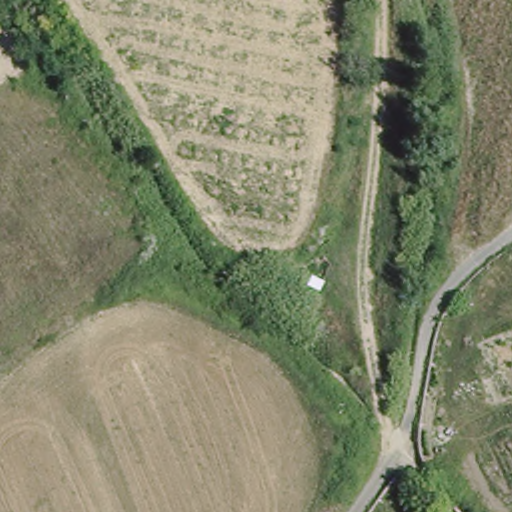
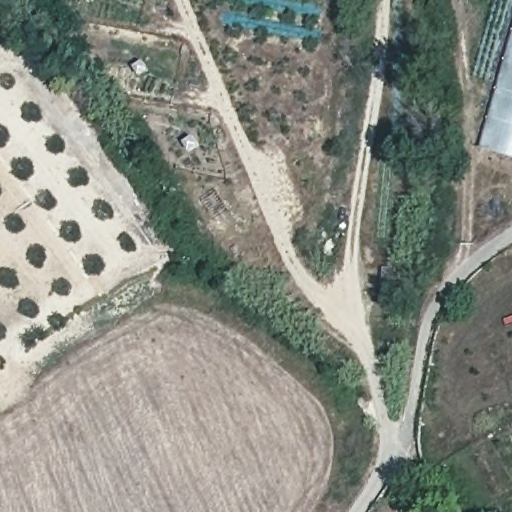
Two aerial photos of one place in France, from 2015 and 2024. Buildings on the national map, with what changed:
new [(512,32),(512,157),(480,148),(512,32)]

